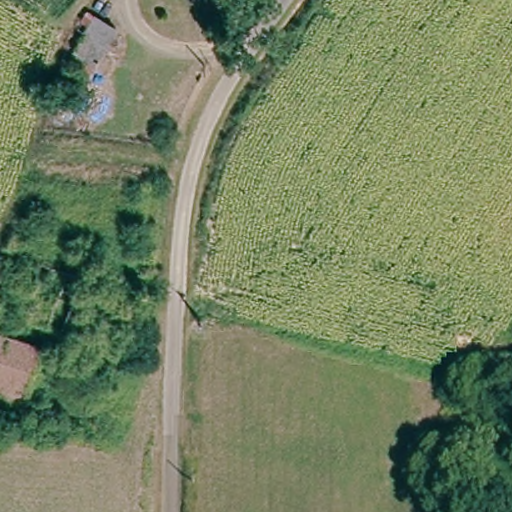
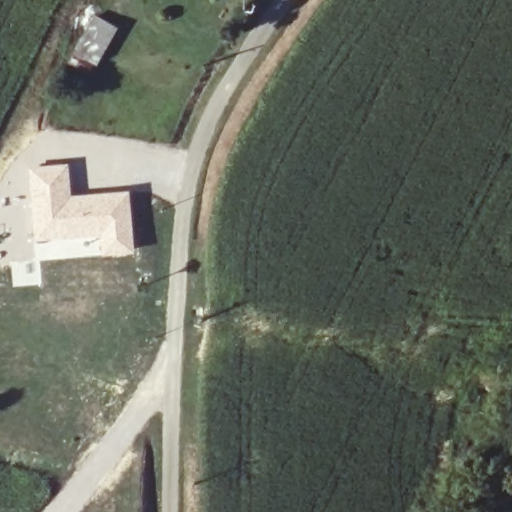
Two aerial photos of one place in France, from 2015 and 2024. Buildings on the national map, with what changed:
unchanged [(102,60),(69,44),(84,11),(118,25),(102,60)]
new [(69,162),(73,194),(129,189),(135,252),(49,259),(49,254),(50,254),(50,245),(44,246),(44,243),(34,244),(28,166),(69,162)]
unchanged [(37,407),(0,396),(0,333),(54,349),(37,407)]

